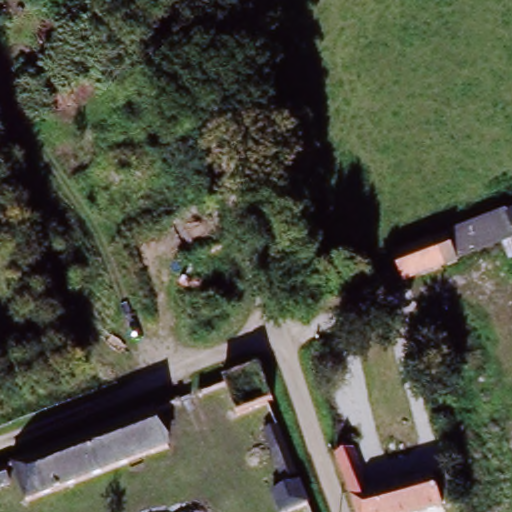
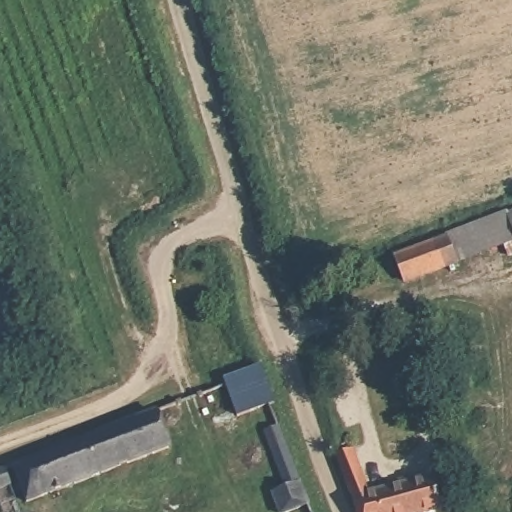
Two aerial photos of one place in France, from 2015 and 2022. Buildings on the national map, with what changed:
unchanged [(505,252),(401,289),(399,281),(387,286),(375,259),(390,250),(392,256),(512,211),(512,261),(509,263),(505,252)]
unchanged [(29,504),(14,465),(155,411),(169,451),(29,504)]
unchanged [(277,512),(272,499),(286,494),(271,455),(266,440),(281,433),(302,489),(309,509),(301,512),(277,512)]
unchanged [(357,512),(352,498),(337,457),(352,452),(369,494),(434,476),(442,506),(418,512),(357,512)]
unchanged [(5,468),(11,484),(0,487),(0,470),(5,468)]

